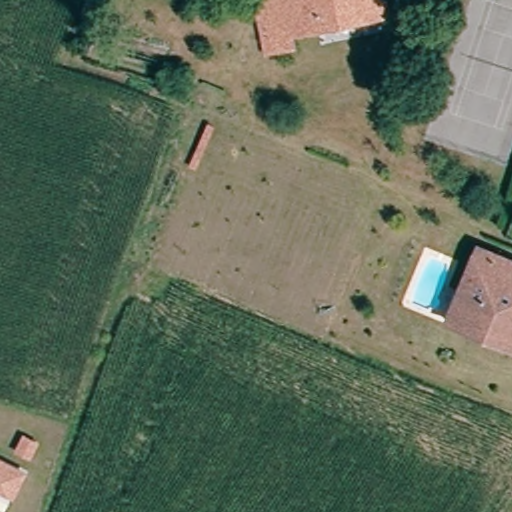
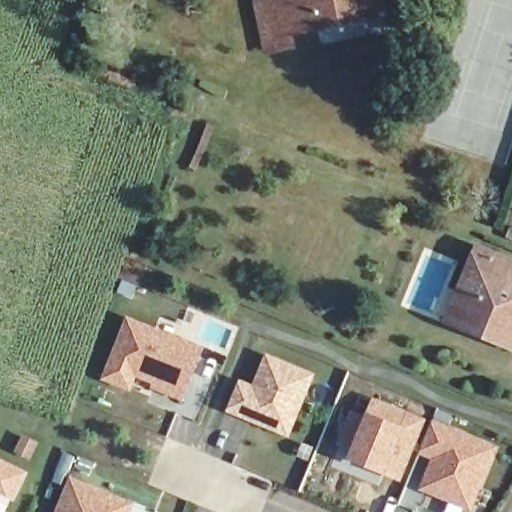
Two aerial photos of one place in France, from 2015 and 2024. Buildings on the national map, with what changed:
unchanged [(362,19),(287,35),(290,51),(275,53),(270,42),(264,44),(253,3),(262,0),(264,0),(378,0),(381,15),(362,19)]
unchanged [(458,290),(473,243),(512,257),(512,345),(497,339),(448,321),(458,290)]
new [(151,390),(154,384),(137,378),(132,391),(101,380),(127,316),(205,347),(184,402),(151,390)]
new [(227,411),(241,380),(254,385),(267,354),(316,374),(289,437),(227,411)]
new [(348,458),(352,450),(337,444),(351,410),(365,418),(368,413),(373,396),(427,419),(402,481),(348,458)]
new [(471,512),(418,490),(431,459),(420,454),(434,420),(497,447),(471,512)]
unchanged [(7,446),(14,432),(28,439),(21,453),(7,446)]
unchanged [(18,497),(4,490),(1,495),(0,495),(0,460),(30,474),(18,497)]
new [(71,476),(136,504),(135,506),(150,512),(55,512),(71,476)]

